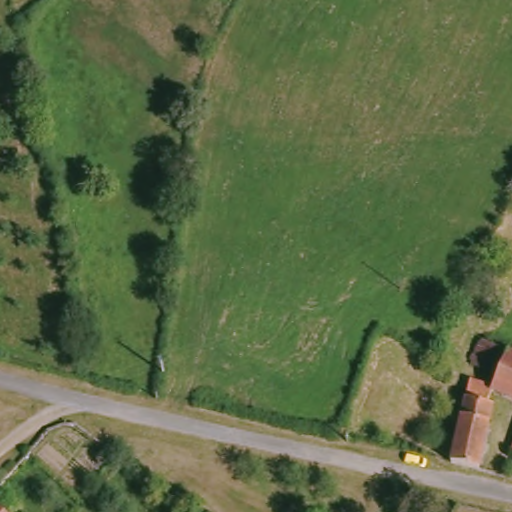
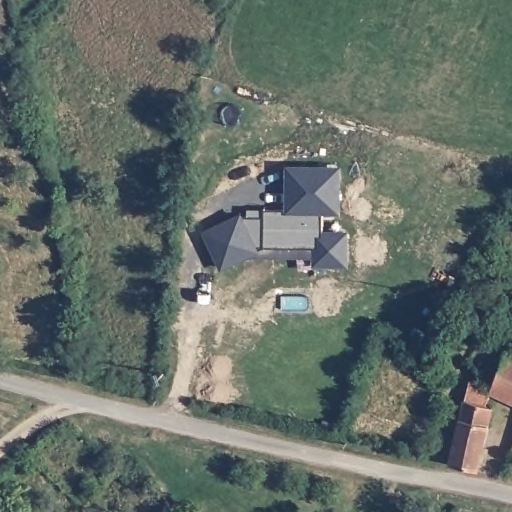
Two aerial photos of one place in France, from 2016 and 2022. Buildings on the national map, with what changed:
new [(244,217),(249,217),(249,210),(288,210),(289,166),(343,165),(343,214),(324,213),(324,230),(351,231),(350,267),(316,266),(316,257),(254,256),(223,271),(204,231),(243,214),(244,217)]
unchanged [(473,367),(465,364),(482,327),(508,341),(488,382),(493,400),(467,393),(473,367)]
unchanged [(508,341),(512,343),(512,398),(488,382),(508,341)]
unchanged [(493,400),(473,466),(448,460),(467,393),(493,400)]
unchanged [(512,436),(512,448),(509,447),(512,436)]
unchanged [(9,512),(0,512),(0,506),(9,512)]

